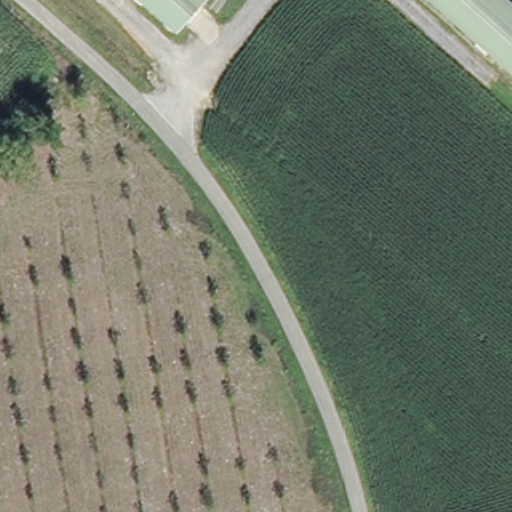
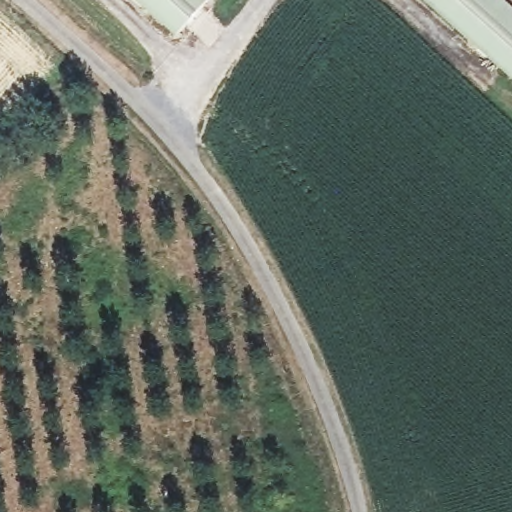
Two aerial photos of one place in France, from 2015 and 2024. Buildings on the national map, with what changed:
unchanged [(136,0),(207,0),(178,36),(136,0)]
unchanged [(418,0),(506,0),(512,5),(512,82),(418,0)]

